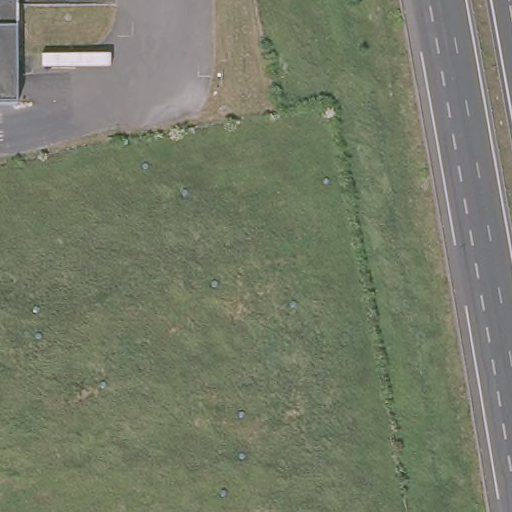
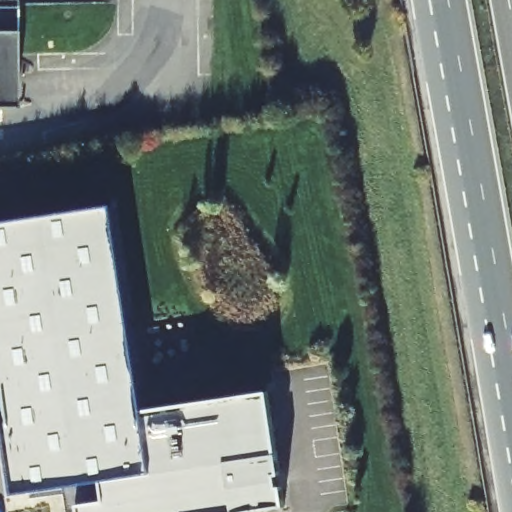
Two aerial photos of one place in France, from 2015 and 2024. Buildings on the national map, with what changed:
unchanged [(19,104),(0,104),(0,0),(19,0),(19,104)]
new [(142,412),(265,391),(284,505),(233,512),(78,512),(77,506),(104,501),(102,477),(14,488),(0,399),(0,223),(110,206),(142,412)]

